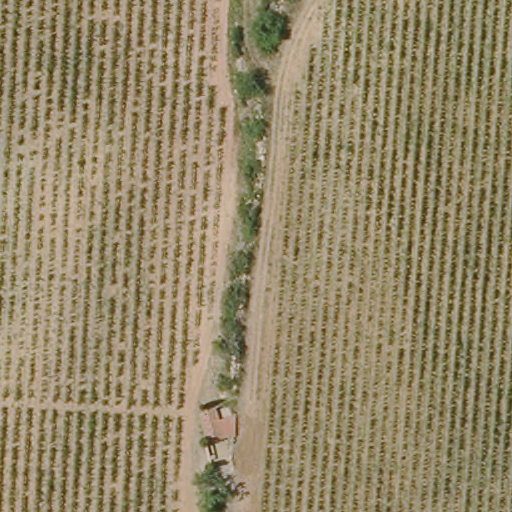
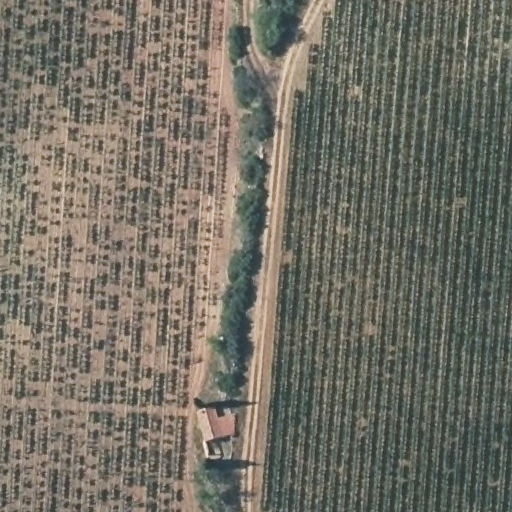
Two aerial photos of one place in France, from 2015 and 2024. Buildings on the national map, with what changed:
unchanged [(209,420),(226,415),(231,433),(211,436),(209,420)]

